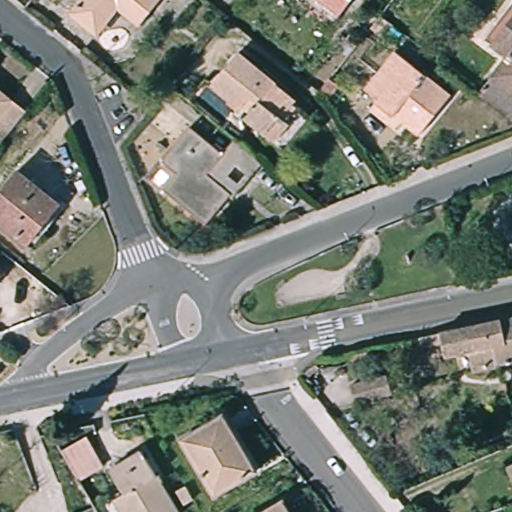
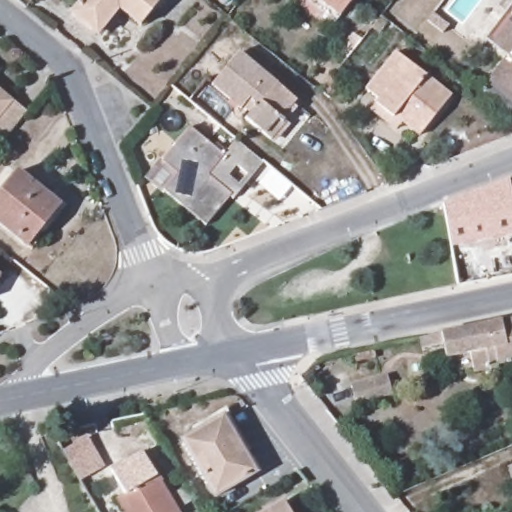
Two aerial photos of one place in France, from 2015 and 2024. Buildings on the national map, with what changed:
unchanged [(120,8),(98,35),(73,12),(83,0),(162,0),(141,25),(120,8)]
unchanged [(316,0),(348,0),(336,15),(316,0)]
unchanged [(510,57),(493,43),(512,19),(512,121),(480,95),(510,57)]
unchanged [(391,52),(447,98),(416,136),(390,116),(389,118),(371,104),(374,100),(362,89),(391,52)]
unchanged [(240,53),(277,84),(275,87),(294,104),(281,120),(286,123),(271,141),(247,121),(254,113),(245,106),(242,109),(214,84),(240,53)]
unchanged [(0,135),(0,91),(22,108),(0,135)]
unchanged [(208,173),(232,193),(206,224),(150,178),(191,127),(223,154),(208,173)]
unchanged [(223,154),(236,140),(263,162),(250,177),(223,154)]
unchanged [(60,206),(27,245),(0,224),(0,195),(18,172),(60,206)]
new [(512,194),(512,236),(452,248),(443,204),(510,179),(512,194)]
unchanged [(1,276),(0,277),(0,275),(1,276)]
unchanged [(499,364),(474,369),(470,348),(445,352),(442,339),(421,343),(419,334),(512,315),(512,358),(498,361),(499,364)]
unchanged [(351,385),(388,378),(392,393),(356,402),(351,385)]
unchanged [(224,419),(256,472),(215,495),(184,442),(224,419)]
unchanged [(93,433),(110,461),(108,464),(87,476),(70,447),(93,433)]
unchanged [(148,448),(186,512),(185,512),(132,512),(123,495),(131,490),(117,466),(148,448)]
unchanged [(512,460),(512,470),(509,461),(512,460)]
unchanged [(494,487),(512,479),(512,501),(500,505),(494,487)]
unchanged [(285,503),(290,512),(270,512),(285,503)]

